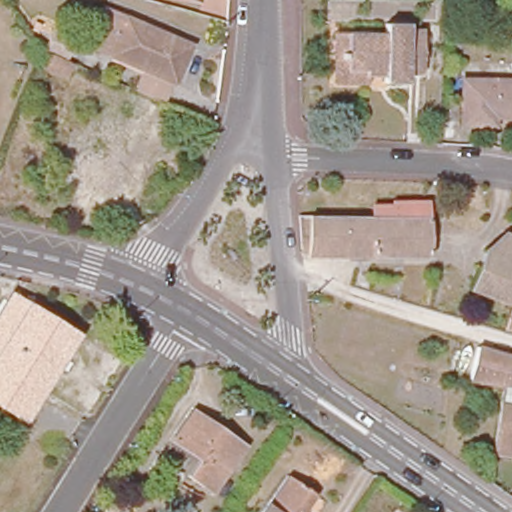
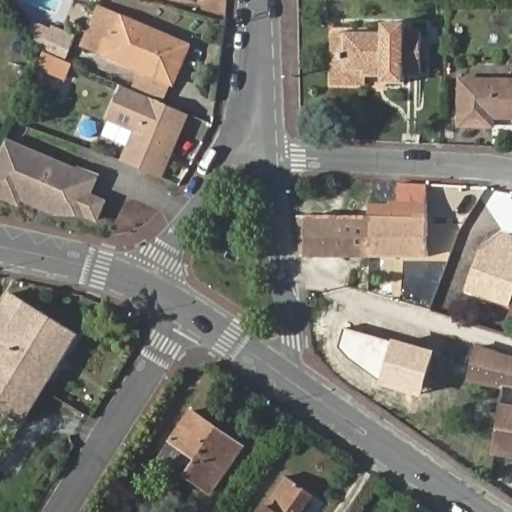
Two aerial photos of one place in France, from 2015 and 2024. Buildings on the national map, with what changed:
unchanged [(133,1),(129,0),(134,0),(133,1)]
unchanged [(201,1),(196,0),(202,0),(201,1)]
unchanged [(182,88),(117,60),(94,50),(111,13),(134,23),(198,50),(182,88)]
new [(43,49),(29,29),(31,25),(50,33),(52,27),(73,36),(70,41),(63,58),(43,49)]
unchanged [(328,87),(329,62),(330,38),(378,39),(378,29),(400,30),(399,36),(415,36),(414,76),(400,76),(399,87),(377,87),(377,80),(358,80),(358,88),(328,87)]
unchanged [(71,64),(65,78),(38,67),(44,53),(71,64)]
unchanged [(461,80),(512,82),(512,118),(493,118),(492,125),(461,125),(461,80)]
new [(122,160),(133,132),(107,121),(122,86),(191,115),(164,179),(122,160)]
demolished [(69,184),(101,108),(151,129),(119,206),(69,184)]
new [(93,194),(108,201),(98,223),(83,217),(57,216),(22,202),(19,209),(0,201),(0,159),(8,139),(100,177),(93,194)]
unchanged [(371,211),(393,211),(393,207),(426,208),(426,225),(427,260),(306,260),(306,224),(371,224),(371,211)]
unchanged [(480,254),(497,239),(512,245),(512,287),(503,309),(464,294),(480,254)]
unchanged [(0,407),(0,309),(9,295),(73,335),(20,420),(0,407)]
new [(383,381),(349,359),(339,348),(345,328),(394,341),(394,339),(436,351),(423,397),(382,386),(383,381)]
unchanged [(473,388),(478,355),(512,365),(512,395),(502,393),(473,388)]
unchanged [(499,409),(512,411),(512,458),(493,455),(499,409)]
unchanged [(194,414),(248,450),(214,499),(162,463),(194,414)]
unchanged [(313,497),(303,512),(261,512),(286,476),(313,497)]

